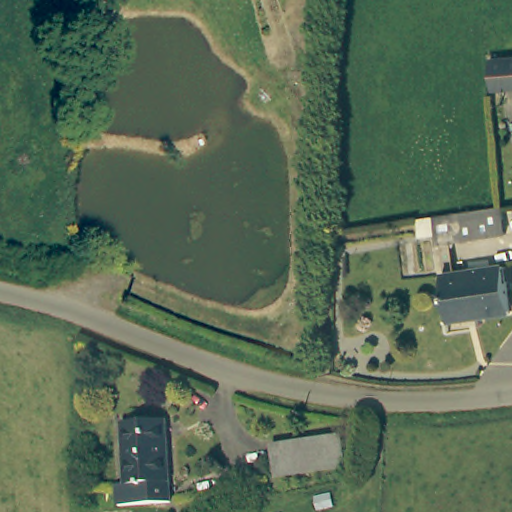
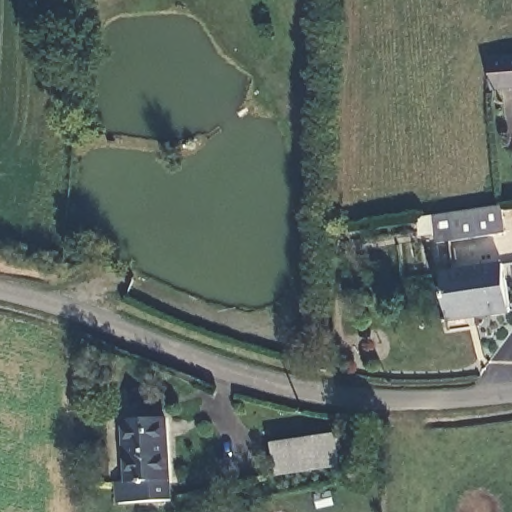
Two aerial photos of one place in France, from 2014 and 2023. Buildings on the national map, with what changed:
unchanged [(491,61),(512,59),(512,89),(491,90),(491,61)]
unchanged [(429,222),(501,212),(503,223),(505,237),(432,247),(430,234),(429,222)]
unchanged [(510,319),(448,327),(441,282),(505,273),(510,319)]
unchanged [(166,426),(169,505),(117,506),(117,487),(126,486),(126,425),(166,426)]
unchanged [(347,472),(278,481),(275,450),(343,442),(347,472)]

